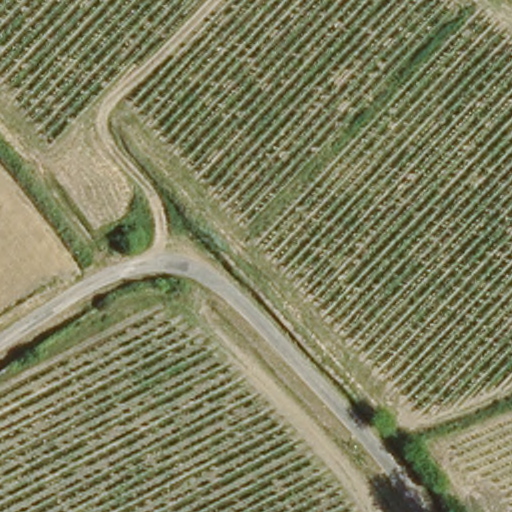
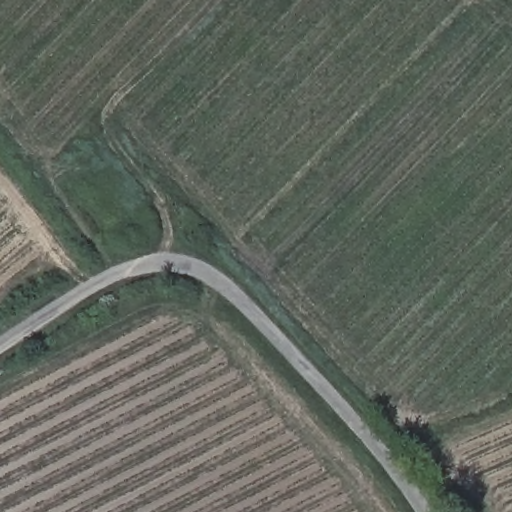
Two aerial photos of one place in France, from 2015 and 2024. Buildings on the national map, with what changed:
unchanged [(129,220),(135,226),(130,231),(125,225),(129,220)]

